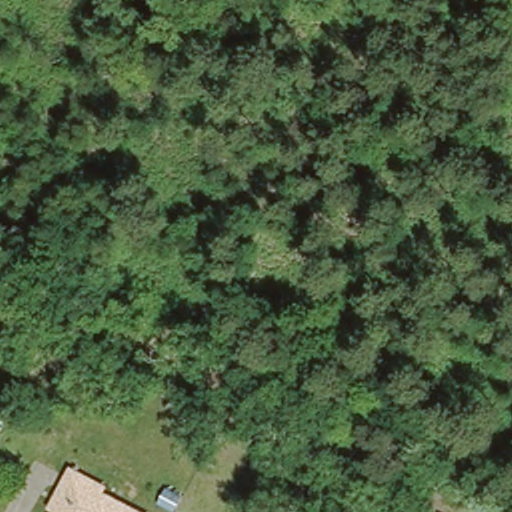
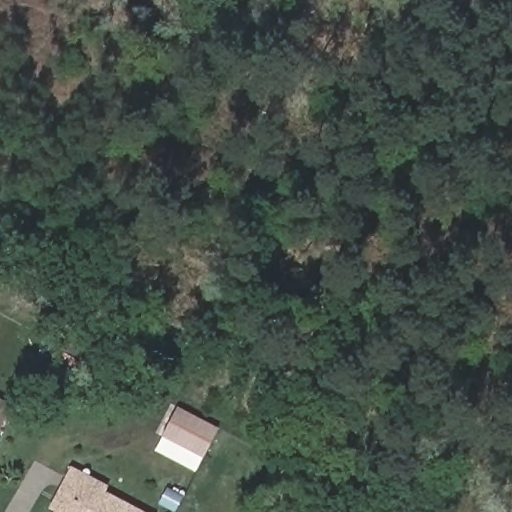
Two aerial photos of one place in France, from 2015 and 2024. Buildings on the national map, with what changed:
unchanged [(11,403),(0,429),(0,397),(11,403)]
new [(202,460),(160,438),(177,406),(218,428),(202,460)]
unchanged [(68,512),(73,502),(62,495),(77,468),(155,512),(68,512)]

